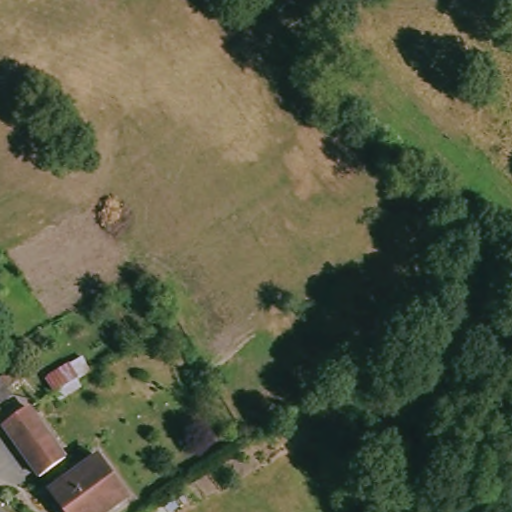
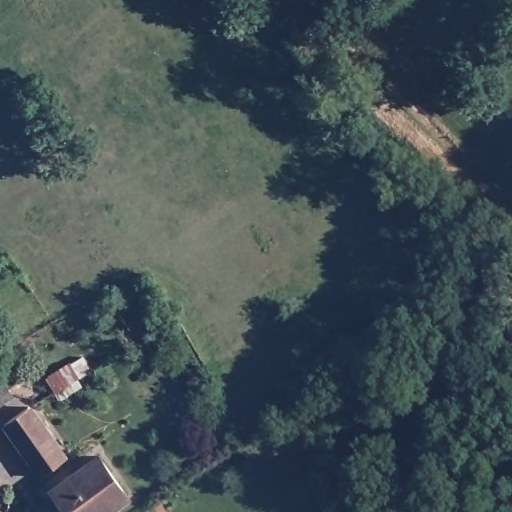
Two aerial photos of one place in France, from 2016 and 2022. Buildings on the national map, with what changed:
unchanged [(57,402),(43,372),(73,357),(88,383),(57,402)]
unchanged [(11,366),(23,383),(9,392),(14,401),(0,410),(0,373),(6,369),(11,366)]
unchanged [(31,471),(0,424),(0,419),(24,405),(58,457),(31,471)]
unchanged [(125,495),(97,512),(59,512),(41,488),(63,472),(95,452),(125,495)]

